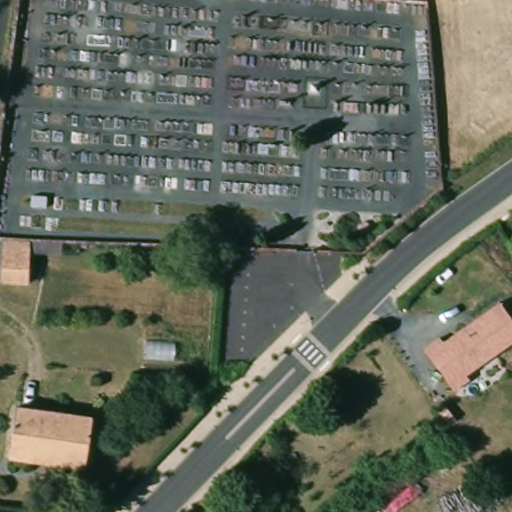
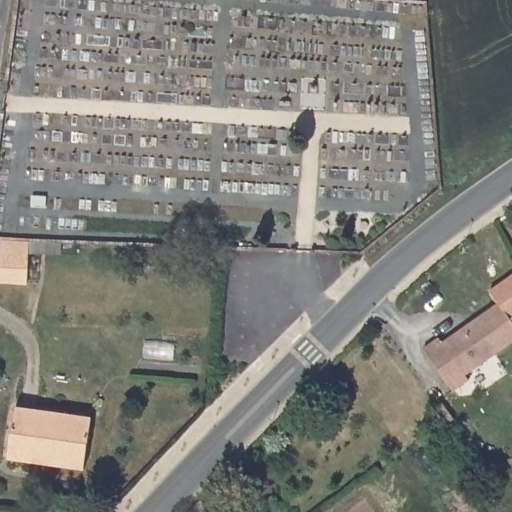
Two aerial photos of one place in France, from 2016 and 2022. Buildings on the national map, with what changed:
unchanged [(24,240),(31,240),(33,240),(31,281),(3,281),(4,239),(24,240)]
unchanged [(434,337),(438,341),(495,301),(512,325),(512,339),(462,374),(466,379),(449,390),(419,348),(434,337)]
unchanged [(94,419),(87,470),(11,458),(19,408),(94,419)]
unchanged [(204,500),(212,507),(207,512),(193,512),(203,501),(204,500)]

